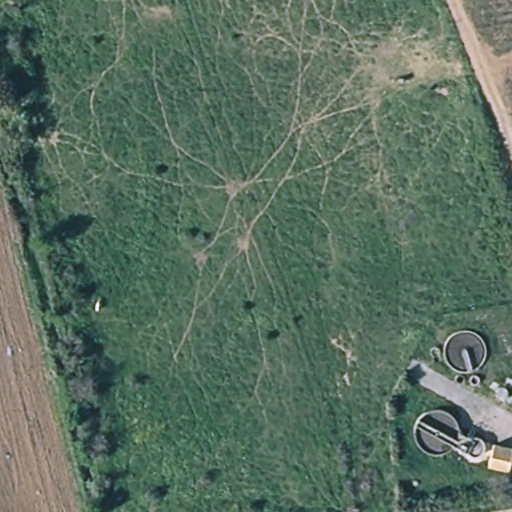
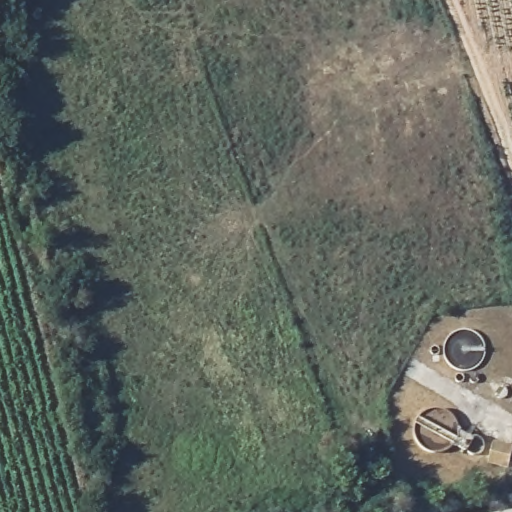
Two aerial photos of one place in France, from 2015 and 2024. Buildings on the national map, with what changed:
unchanged [(489,439),(512,446),(512,447),(508,473),(482,467),(489,439)]

